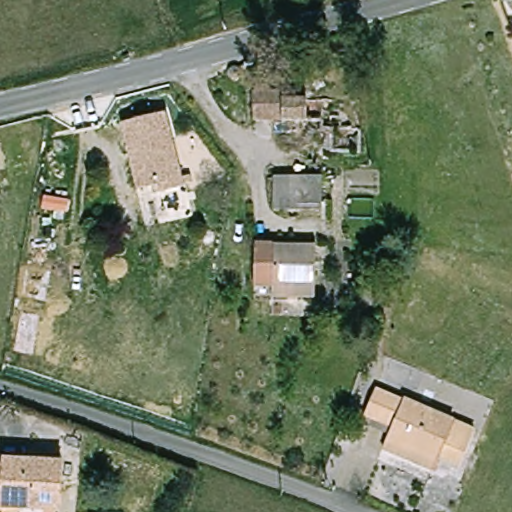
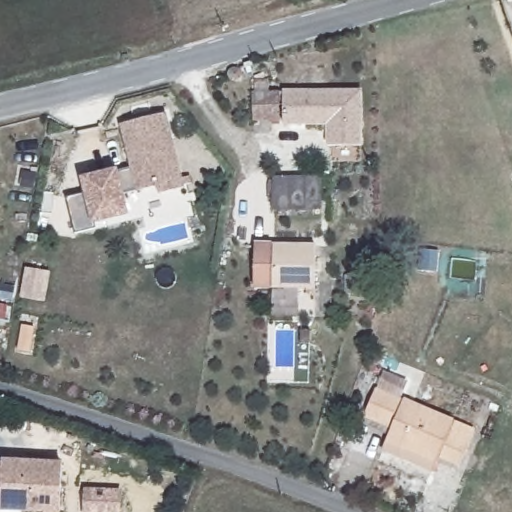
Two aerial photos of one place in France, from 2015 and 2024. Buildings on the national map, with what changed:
new [(269,79),(269,88),(363,90),(364,147),(326,146),(325,125),(253,121),(255,79),(269,79)]
demolished [(250,95),(254,95),(255,81),(267,81),(267,93),(278,93),(278,100),(325,102),(323,129),(312,128),(312,122),(249,119),(250,95)]
unchanged [(162,194),(160,186),(142,191),(124,128),(164,116),(185,187),(162,194)]
demolished [(358,154),(331,153),(330,130),(359,131),(358,154)]
new [(86,194),(82,177),(117,169),(119,172),(135,166),(142,191),(125,195),(130,217),(96,225),(96,229),(76,234),(67,197),(86,194)]
unchanged [(307,204),(275,204),(275,176),(320,177),(320,195),(321,205),(307,204)]
unchanged [(270,296),(271,280),(255,279),(258,239),(318,244),(315,284),(313,300),(270,296)]
unchanged [(387,450),(390,442),(396,429),(381,423),(366,417),(377,388),(456,421),(454,425),(479,435),(465,468),(444,459),(442,463),(439,471),(387,450)]
unchanged [(5,490),(7,459),(66,462),(64,511),(13,509),(4,509),(5,490)]

